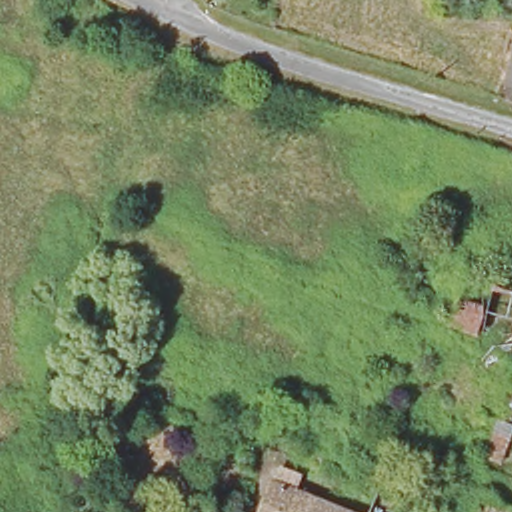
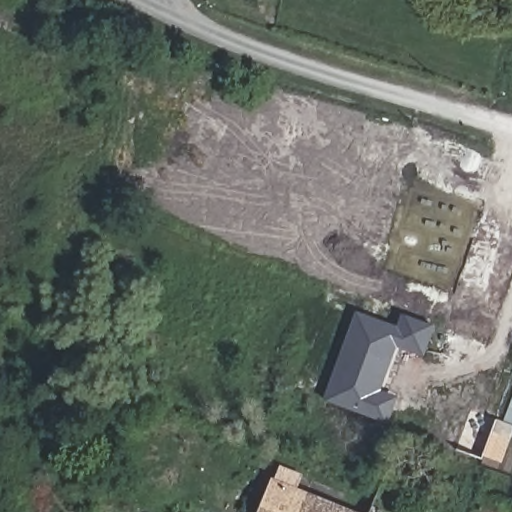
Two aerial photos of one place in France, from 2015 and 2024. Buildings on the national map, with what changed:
unchanged [(452,327),(467,279),(498,288),(482,336),(452,327)]
demolished [(512,292),(512,345),(482,336),(498,288),(512,292)]
new [(401,314),(435,325),(424,357),(396,348),(381,391),(398,396),(387,423),(324,401),(356,311),(397,325),(401,314)]
unchanged [(512,439),(502,464),(484,457),(496,419),(512,427),(512,439)]
unchanged [(416,462),(406,459),(410,446),(417,448),(420,449),(416,462)]
unchanged [(277,478),(297,485),(293,499),(334,512),(266,512),(277,478)]
unchanged [(454,488),(484,498),(512,508),(512,512),(445,512),(454,488)]

